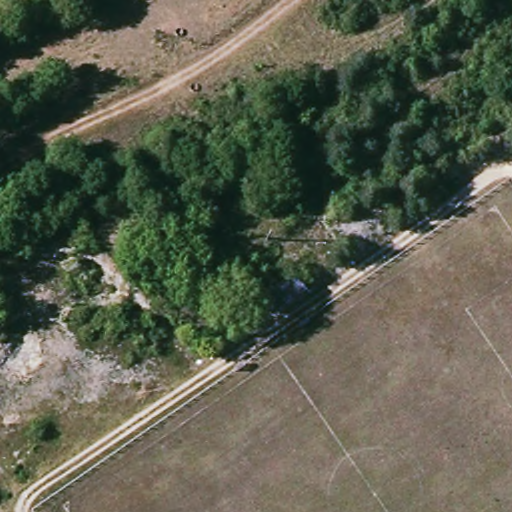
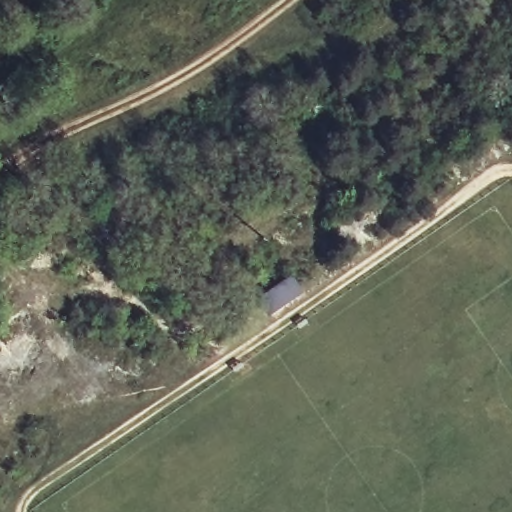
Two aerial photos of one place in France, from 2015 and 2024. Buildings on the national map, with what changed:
unchanged [(289,277),(301,293),(266,318),(258,300),(289,277)]

